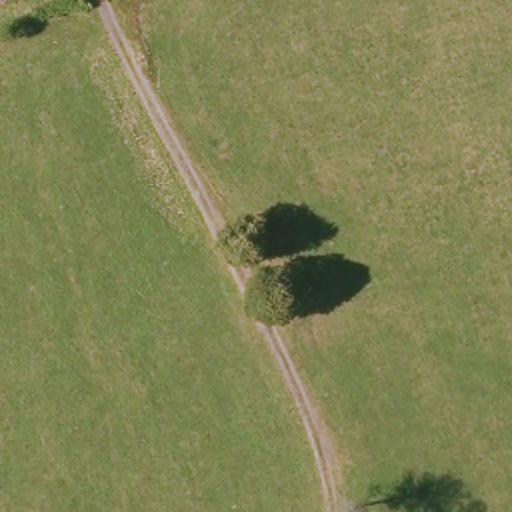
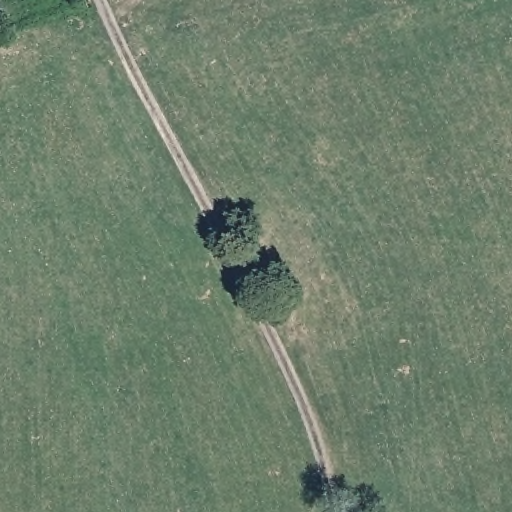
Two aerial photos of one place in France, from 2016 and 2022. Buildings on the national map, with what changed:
[]

